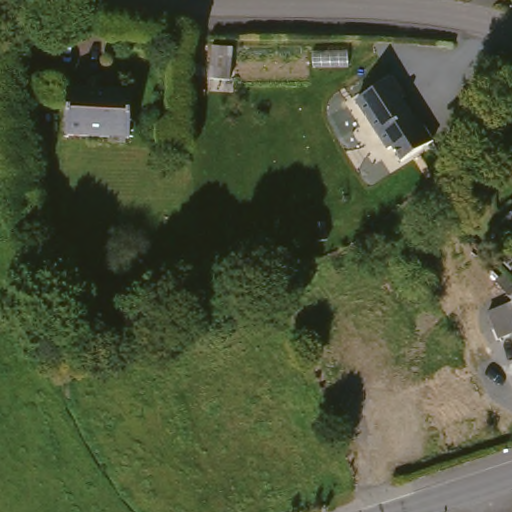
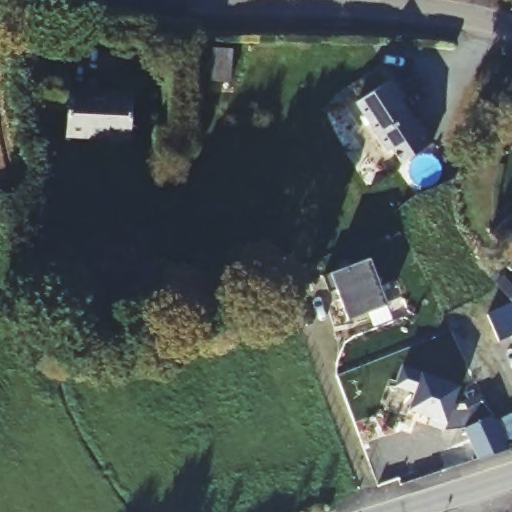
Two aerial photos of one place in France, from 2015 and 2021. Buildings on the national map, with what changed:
unchanged [(385,77),(398,95),(394,98),(413,126),(417,124),(427,139),(396,160),(386,145),(382,148),(350,100),(385,77)]
unchanged [(132,141),(70,137),(70,91),(135,94),(132,141)]
new [(335,287),(328,291),(322,275),(331,273),(369,260),(386,306),(349,321),(335,287)]
unchanged [(512,294),(512,295),(505,302),(490,289),(498,281),(512,294)]
unchanged [(497,336),(488,327),(483,313),(512,301),(512,331),(507,333),(497,336)]
unchanged [(507,333),(512,331),(512,348),(507,333)]
new [(402,366),(421,370),(460,383),(451,410),(466,408),(463,401),(481,394),(482,397),(483,398),(492,415),(494,415),(497,420),(512,414),(512,439),(507,442),(512,450),(478,460),(464,430),(444,432),(429,426),(432,419),(408,410),(414,391),(396,387),(402,366)]

